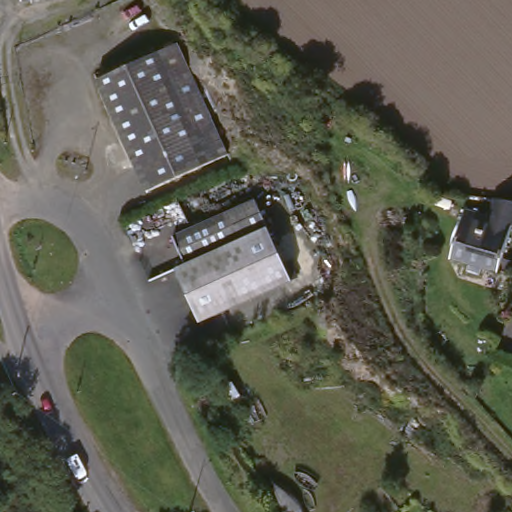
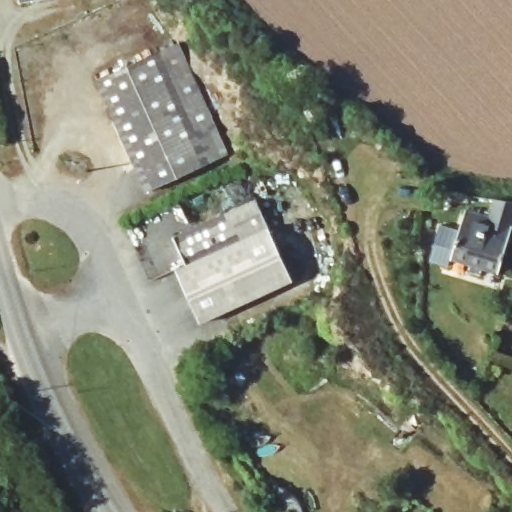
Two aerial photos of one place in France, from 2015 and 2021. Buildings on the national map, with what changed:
unchanged [(21,0),(29,0),(21,1),(21,0)]
unchanged [(176,46),(228,153),(144,193),(93,86),(176,46)]
unchanged [(461,214),(485,220),(491,200),(512,203),(512,228),(510,228),(493,277),(446,260),(461,214)]
unchanged [(254,201),(268,229),(186,266),(173,240),(254,201)]
unchanged [(291,281),(199,322),(174,270),(186,266),(268,229),(291,281)]

